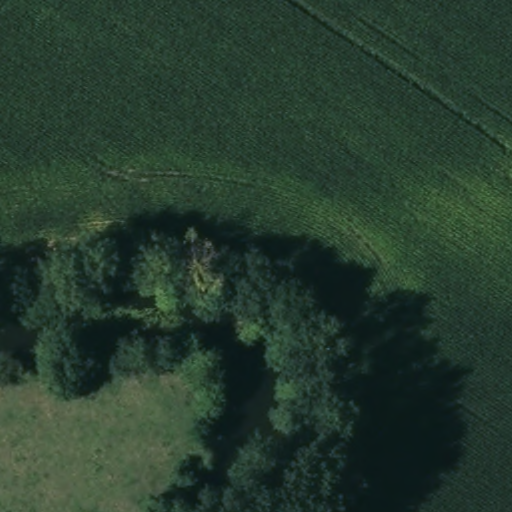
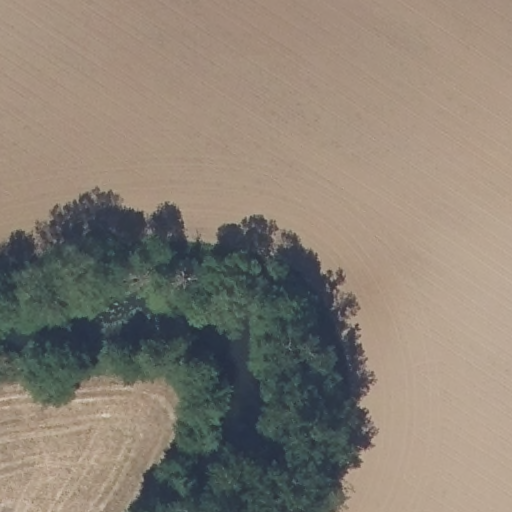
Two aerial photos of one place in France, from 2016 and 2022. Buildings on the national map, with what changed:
[]

